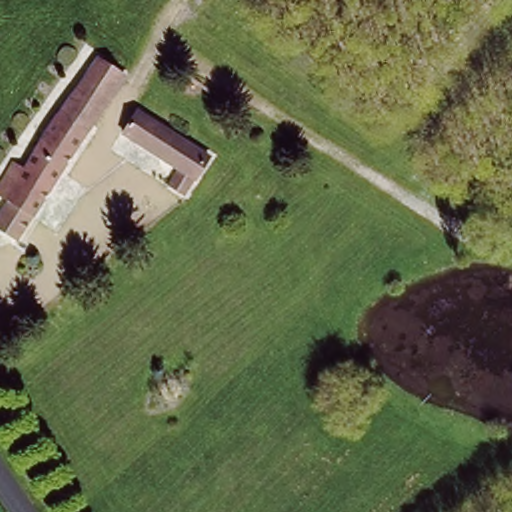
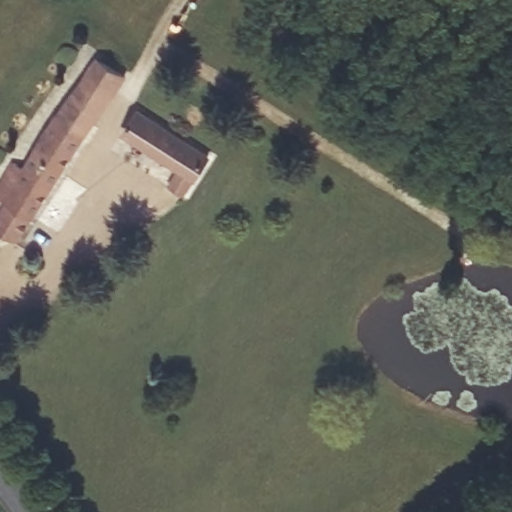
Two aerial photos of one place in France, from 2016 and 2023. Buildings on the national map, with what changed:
unchanged [(77,70),(106,91),(20,231),(0,217),(0,185),(77,70)]
unchanged [(160,181),(167,167),(119,127),(135,104),(211,155),(177,196),(160,181)]

